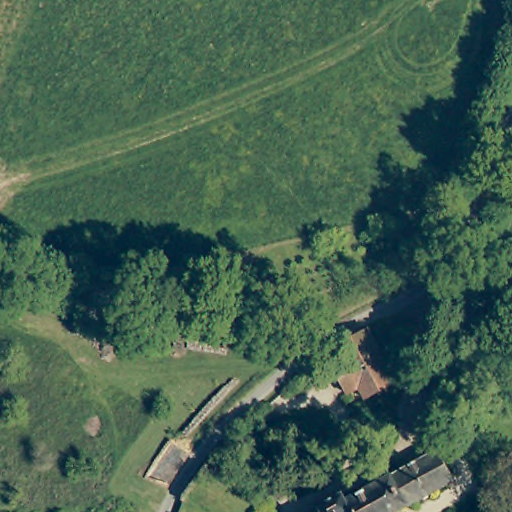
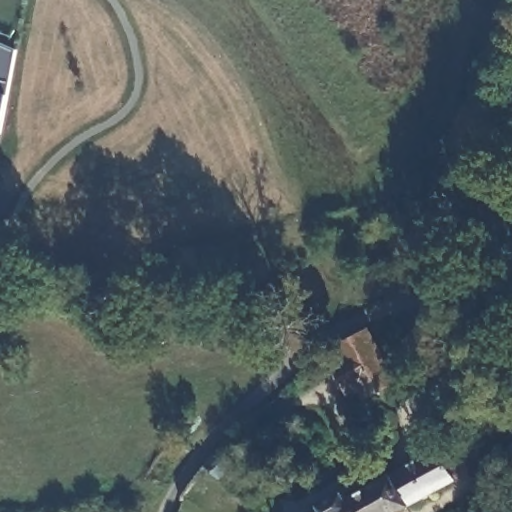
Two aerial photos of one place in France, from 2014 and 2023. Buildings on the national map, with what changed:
new [(17,50),(8,93),(2,129),(0,133),(0,43),(17,50)]
unchanged [(404,379),(378,393),(372,396),(366,386),(355,392),(337,360),(348,354),(343,344),(375,326),(404,379)]
unchanged [(185,448),(190,451),(167,486),(145,475),(168,439),(185,448)]
unchanged [(239,459),(222,478),(206,463),(222,445),(239,459)]
unchanged [(394,512),(324,512),(325,511),(321,504),(345,490),(350,499),(401,470),(440,448),(456,477),(394,512)]

